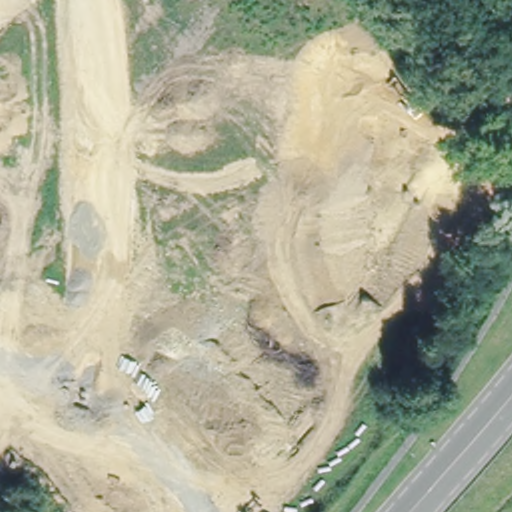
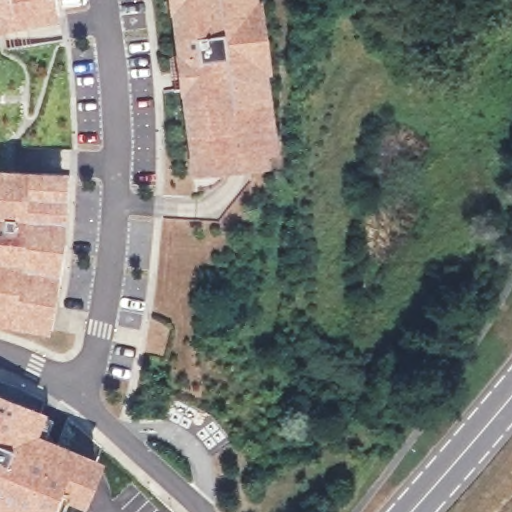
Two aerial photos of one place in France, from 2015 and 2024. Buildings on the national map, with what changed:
new [(0,25),(0,0),(56,0),(59,15),(0,25)]
new [(184,105),(182,89),(172,90),(171,88),(188,86),(186,72),(184,56),(181,56),(180,54),(183,54),(177,6),(172,7),(171,0),(263,0),(263,1),(260,2),(263,22),(266,21),(267,24),(263,24),(265,39),(268,39),(268,41),(265,41),(267,63),(270,63),(271,65),(267,65),(273,125),(264,126),(267,158),(222,162),(224,175),(210,186),(196,188),(187,131),(186,131),(186,129),(182,108),(182,105),(184,105)]
new [(70,176),(67,245),(52,330),(0,321),(0,172),(70,176)]
new [(0,397),(36,411),(41,413),(41,412),(43,413),(42,414),(33,437),(87,459),(95,462),(80,500),(72,497),(65,494),(57,512),(0,512),(0,397)]

